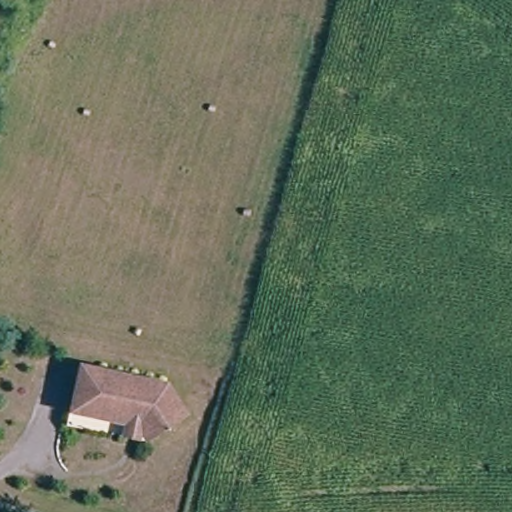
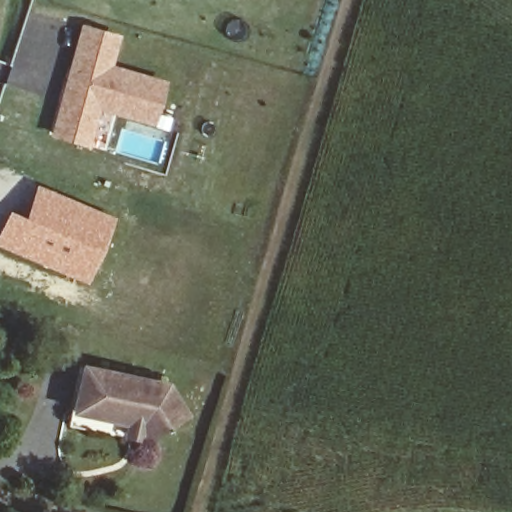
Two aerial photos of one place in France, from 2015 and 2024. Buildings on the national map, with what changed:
new [(121,36),(113,66),(168,83),(155,127),(99,112),(89,150),(48,140),(81,26),(121,36)]
new [(5,209),(20,215),(35,183),(116,217),(86,284),(0,248),(0,220),(5,209)]
unchanged [(129,439),(130,427),(91,419),(77,416),(85,373),(100,376),(169,391),(187,418),(150,442),(144,432),(143,442),(129,439)]

